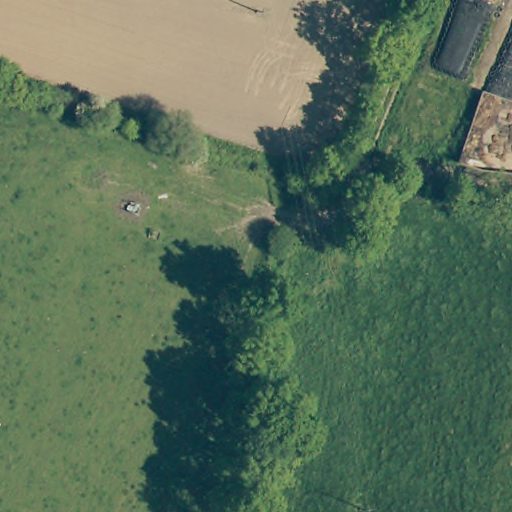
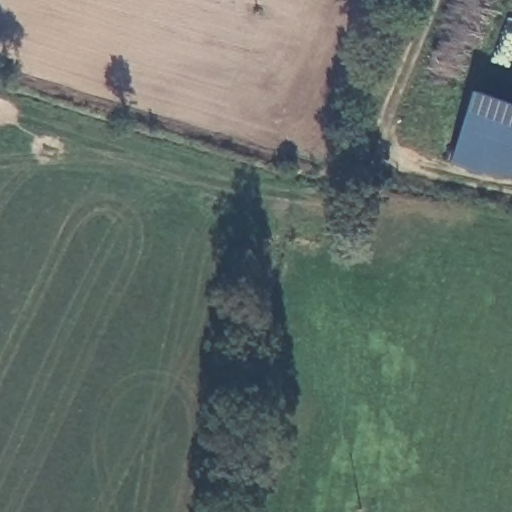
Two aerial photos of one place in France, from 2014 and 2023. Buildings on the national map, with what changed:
new [(480,171),(454,162),(482,89),(512,99),(512,175),(480,171)]

